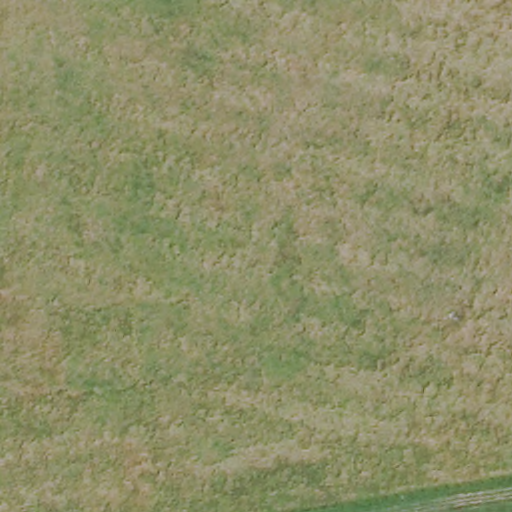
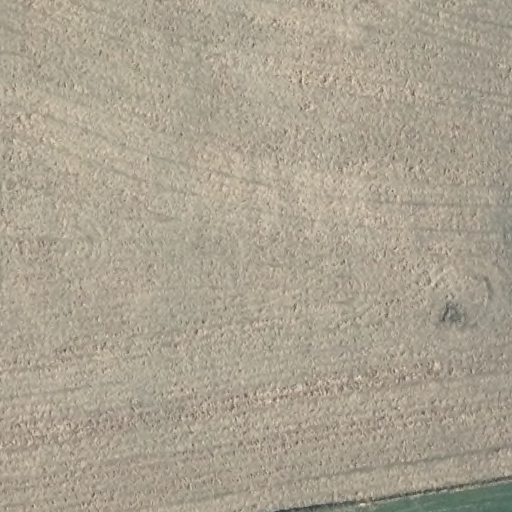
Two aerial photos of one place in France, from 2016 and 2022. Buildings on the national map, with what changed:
[]

